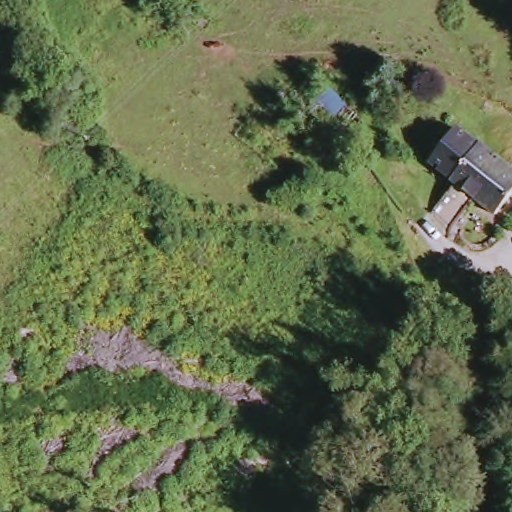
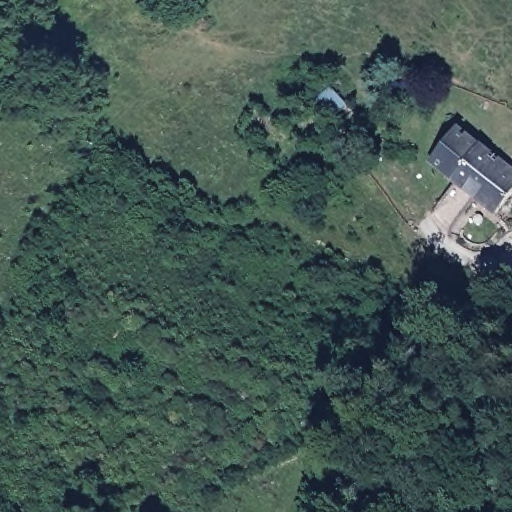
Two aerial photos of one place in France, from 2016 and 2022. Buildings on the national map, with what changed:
unchanged [(443,203),(460,183),(423,152),(457,122),(512,167),(512,196),(499,212),(481,198),(464,220),(443,203)]

